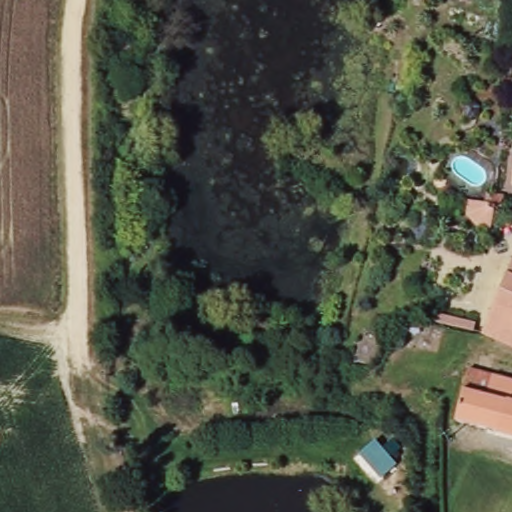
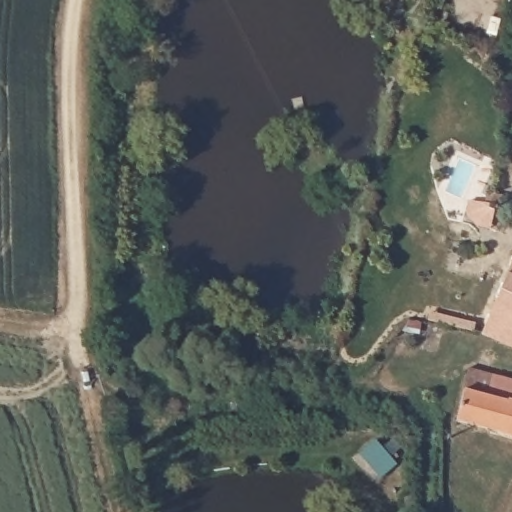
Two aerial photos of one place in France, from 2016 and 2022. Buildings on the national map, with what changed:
unchanged [(490,207),(490,209),(491,209),(493,210),(494,210),(490,229),(476,225),(466,215),(467,200),(490,205),(489,206),(490,207)]
unchanged [(512,274),(512,344),(487,333),(512,274)]
unchanged [(473,368),(512,379),(512,434),(461,421),(473,368)]

